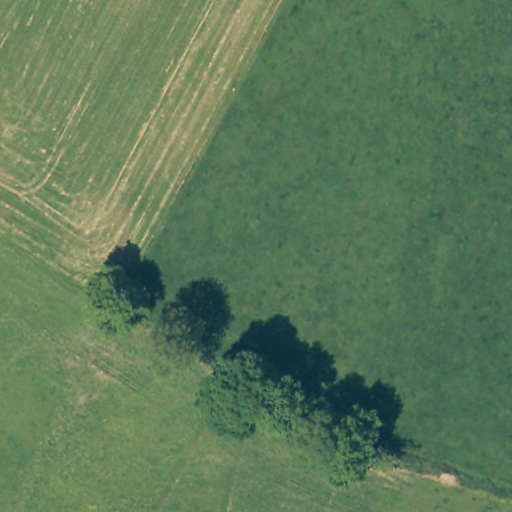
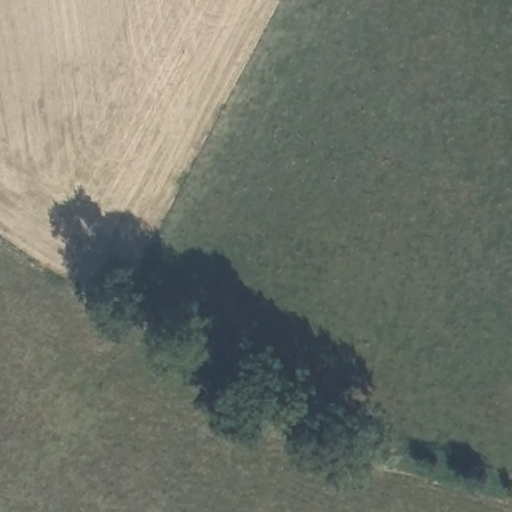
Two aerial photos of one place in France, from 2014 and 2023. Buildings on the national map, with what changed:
[]

